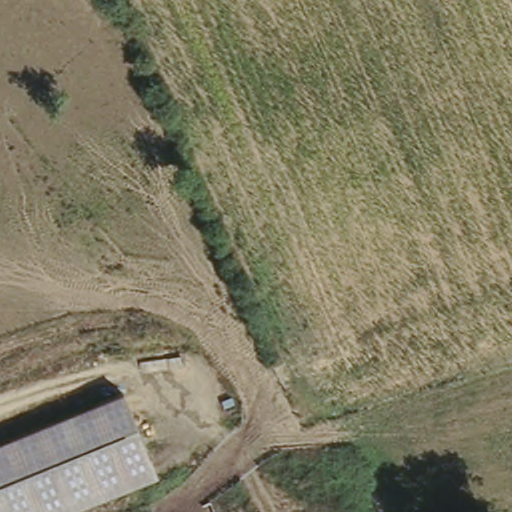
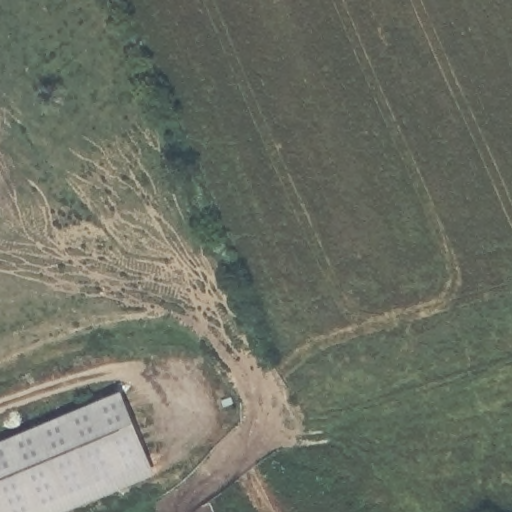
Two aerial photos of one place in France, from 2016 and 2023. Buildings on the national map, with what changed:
unchanged [(122,391),(157,475),(71,512),(0,512),(0,446),(122,391)]

